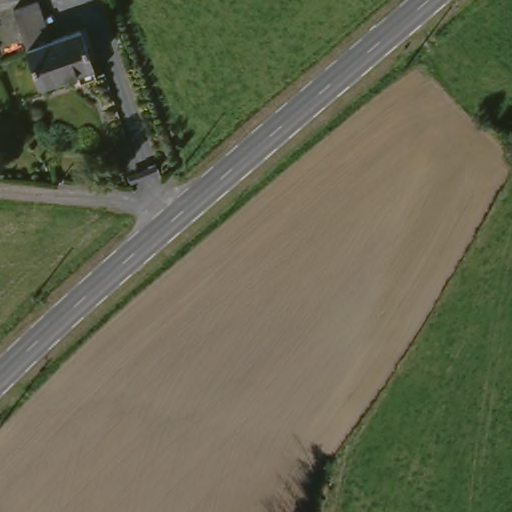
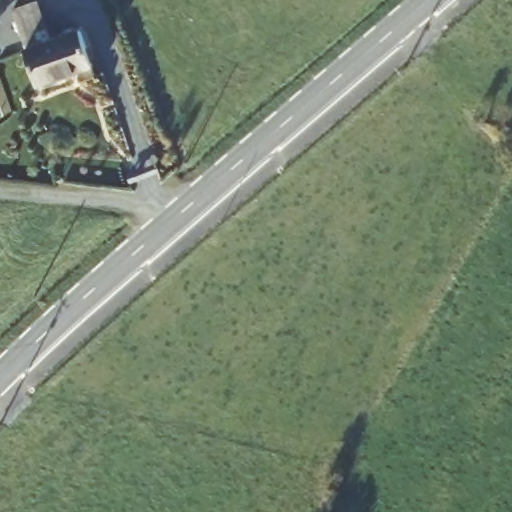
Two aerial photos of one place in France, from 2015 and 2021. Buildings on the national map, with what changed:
unchanged [(50,41),(26,50),(11,10),(36,1),(50,41)]
unchanged [(79,30),(92,66),(39,85),(26,50),(50,41),(79,30)]

